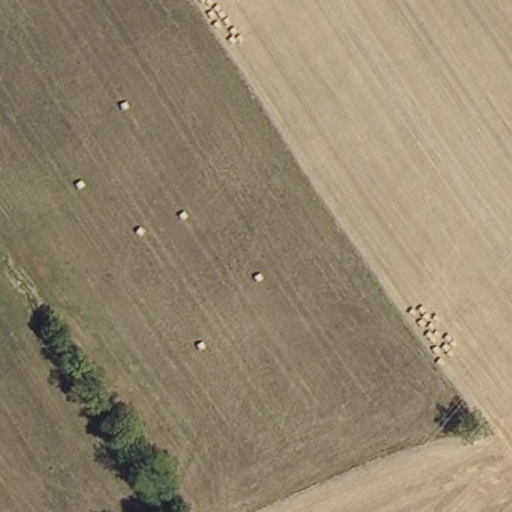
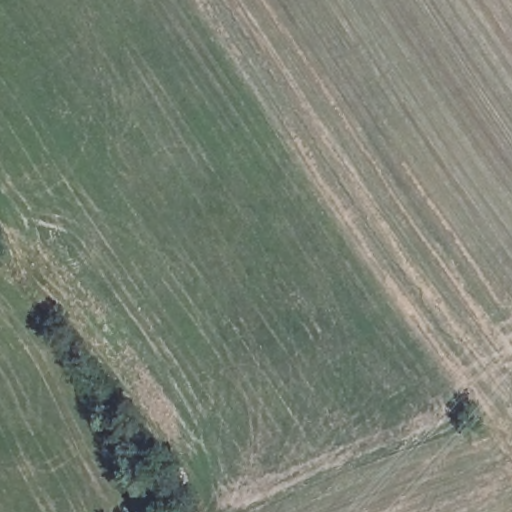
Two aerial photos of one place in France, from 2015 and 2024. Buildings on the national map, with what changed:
[]

